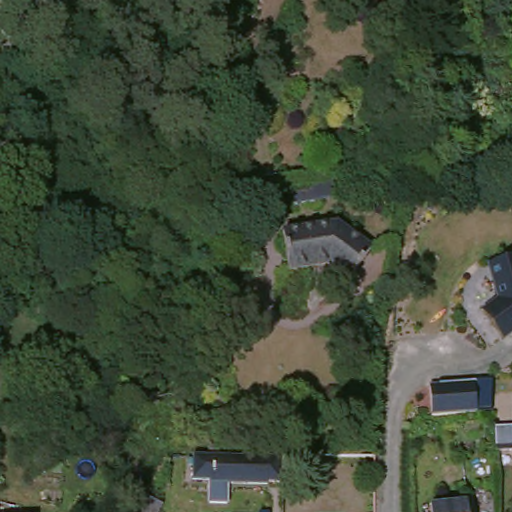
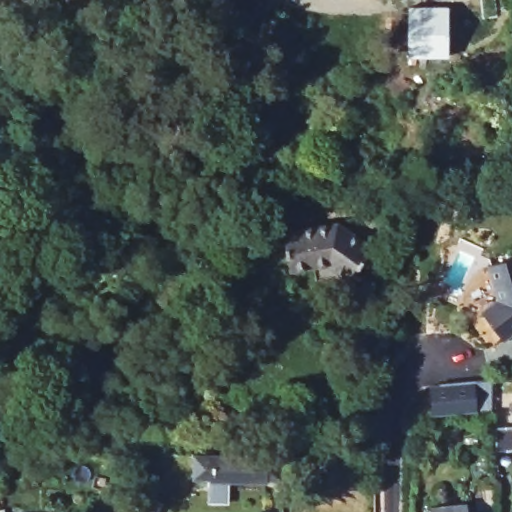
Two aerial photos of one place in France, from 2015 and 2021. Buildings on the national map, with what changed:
new [(448,9),(450,59),(410,59),(408,9),(448,9)]
unchanged [(342,219),(374,238),(361,277),(338,267),(292,276),(287,229),(342,219)]
unchanged [(493,264),(512,260),(512,335),(503,341),(484,313),(501,300),(493,264)]
unchanged [(448,391),(493,388),(495,418),(450,421),(448,391)]
unchanged [(512,455),(511,454),(509,451),(494,452),(495,425),(512,425),(512,455)]
unchanged [(282,464),(278,489),(263,489),(263,491),(198,489),(199,487),(179,485),(180,461),(282,464)]
unchanged [(164,499),(159,512),(143,512),(150,494),(164,499)]
unchanged [(469,512),(432,512),(432,507),(469,507),(469,512)]

